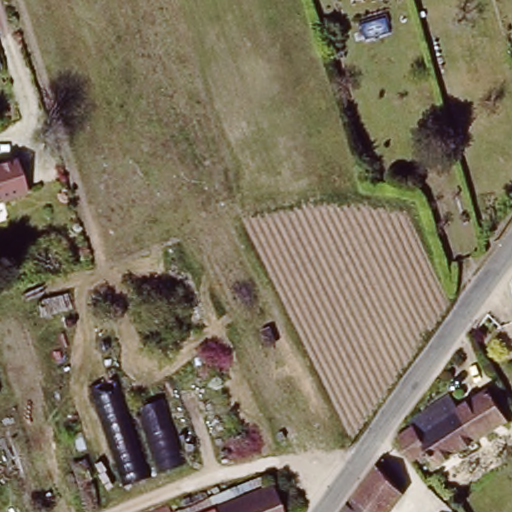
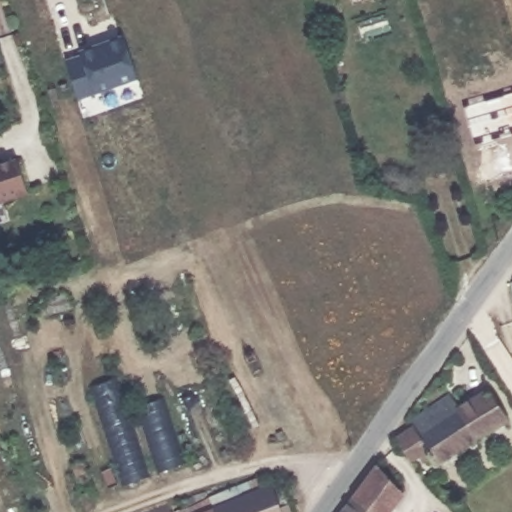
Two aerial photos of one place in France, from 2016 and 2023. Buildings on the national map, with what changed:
new [(95,91),(79,98),(65,58),(82,53),(80,49),(122,36),(137,78),(95,91)]
unchanged [(16,160),(27,196),(0,204),(0,164),(16,160)]
unchanged [(147,476),(123,483),(92,384),(115,375),(147,476)]
unchanged [(407,423),(405,417),(445,389),(455,402),(482,384),(502,412),(432,459),(422,443),(405,454),(392,434),(407,423)]
unchanged [(184,461),(159,469),(139,404),(163,396),(184,461)]
unchanged [(339,503),(373,455),(400,487),(379,512),(332,512),(339,503)]
unchanged [(449,497),(439,482),(453,471),(464,486),(449,497)]
unchanged [(272,489),(282,511),(289,509),(290,512),(214,512),(272,489)]
unchanged [(168,508),(170,512),(157,512),(168,508)]
unchanged [(431,511),(432,512),(429,512),(431,511)]

